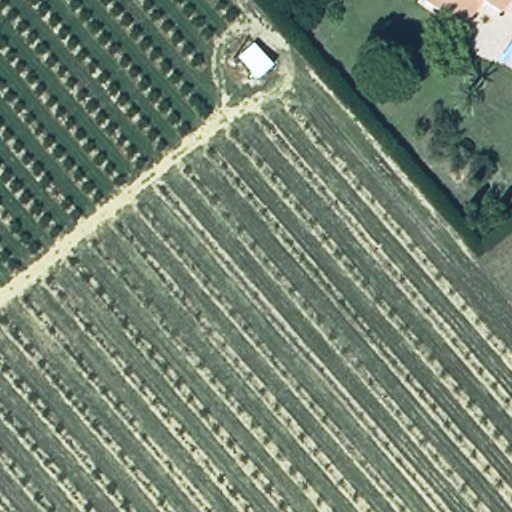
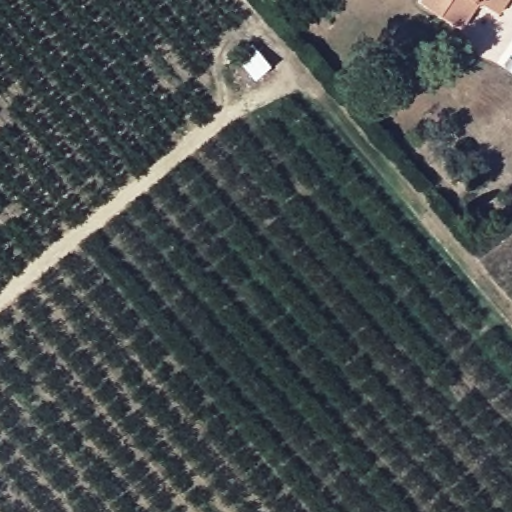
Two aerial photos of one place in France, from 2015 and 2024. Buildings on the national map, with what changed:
unchanged [(494,13),(483,14),(479,7),(463,33),(416,5),(419,0),(500,0),(500,4),(494,13)]

